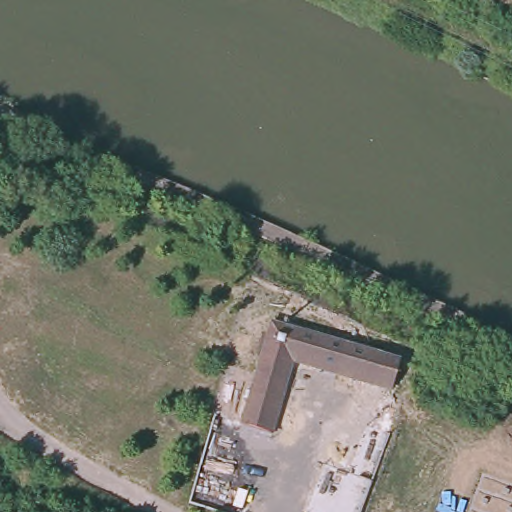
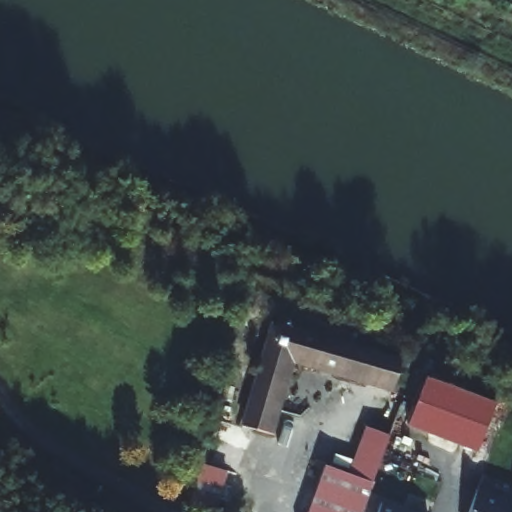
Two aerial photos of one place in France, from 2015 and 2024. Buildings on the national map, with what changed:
unchanged [(385,381),(286,359),(265,431),(239,424),(268,327),(394,358),(385,381)]
new [(409,419),(426,371),(497,397),(479,445),(409,419)]
new [(388,435),(361,512),(307,512),(324,464),(349,473),(365,428),(388,435)]
new [(477,487),(512,499),(512,512),(469,512),(477,487)]
new [(380,500),(414,512),(375,512),(380,500)]

